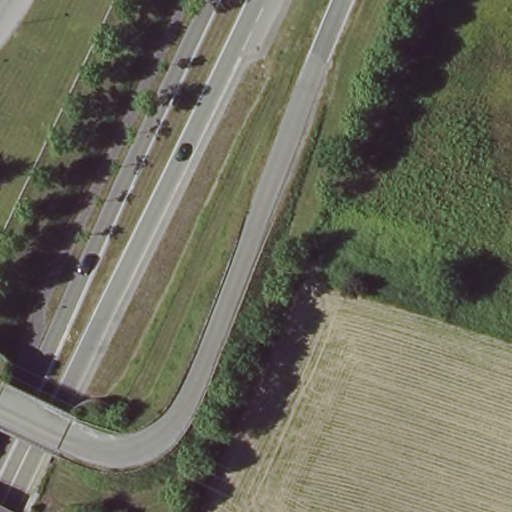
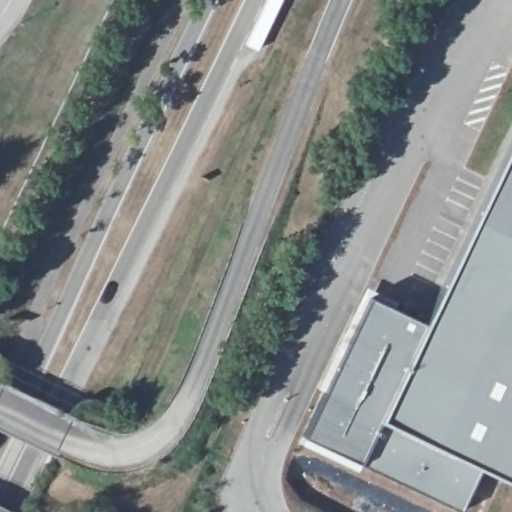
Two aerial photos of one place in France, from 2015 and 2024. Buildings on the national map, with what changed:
new [(424,323),(512,136),(512,483),(482,468),(462,512),(359,464),(304,439),(370,298),(424,323)]

